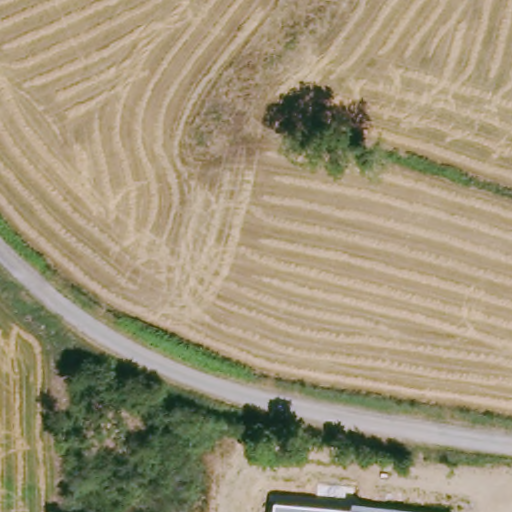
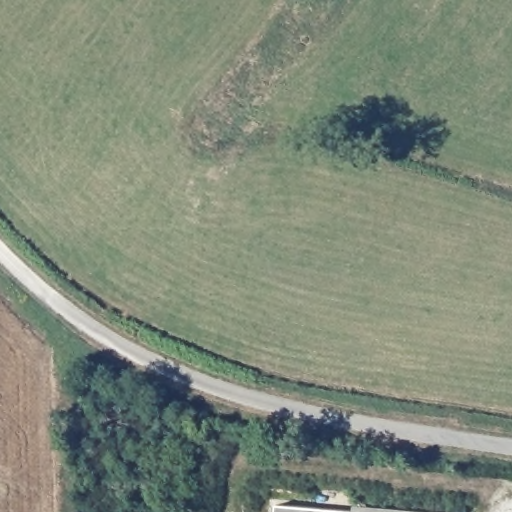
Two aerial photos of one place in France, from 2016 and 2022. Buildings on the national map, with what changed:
unchanged [(335,512),(274,512),(275,506),(335,512)]

